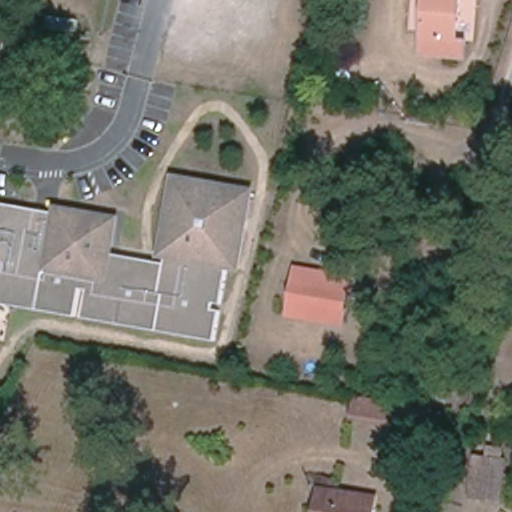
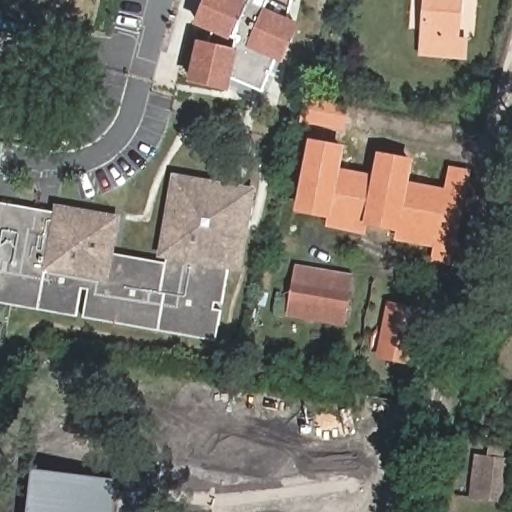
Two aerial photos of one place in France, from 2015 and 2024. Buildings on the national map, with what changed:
new [(213,31),(198,23),(208,0),(294,0),(282,56),(264,92),(229,85),(228,88),(192,80),(200,43),(208,44),(213,31)]
unchanged [(459,39),(468,40),(466,57),(422,54),(426,0),(461,0),(459,39)]
unchanged [(0,77),(0,34),(4,34),(0,77)]
new [(346,131),(307,124),(311,99),(351,106),(346,131)]
new [(431,262),(433,247),(393,240),(396,231),(369,227),(367,235),(326,227),(328,218),(295,212),(310,138),(347,146),(342,168),(373,173),(378,152),(415,159),(410,182),(445,188),(450,166),(472,169),(458,245),(453,244),(450,264),(431,262)]
unchanged [(56,204),(121,215),(116,255),(165,262),(166,259),(160,259),(173,174),(258,187),(242,271),(227,270),(223,301),(217,302),(216,308),(224,309),(217,341),(0,302),(0,203),(53,212),(56,204)]
unchanged [(353,275),(345,327),(289,319),(298,266),(353,275)]
new [(392,303),(423,309),(415,350),(412,361),(382,355),(384,343),(392,303)]
demolished [(358,397),(428,410),(424,428),(355,416),(358,397)]
unchanged [(471,497),(477,455),(490,456),(491,445),(506,447),(504,457),(509,458),(503,502),(471,497)]
new [(121,479),(120,490),(138,493),(136,512),(28,512),(34,469),(121,479)]
demolished [(376,501),(374,512),(329,512),(333,494),(376,501)]

